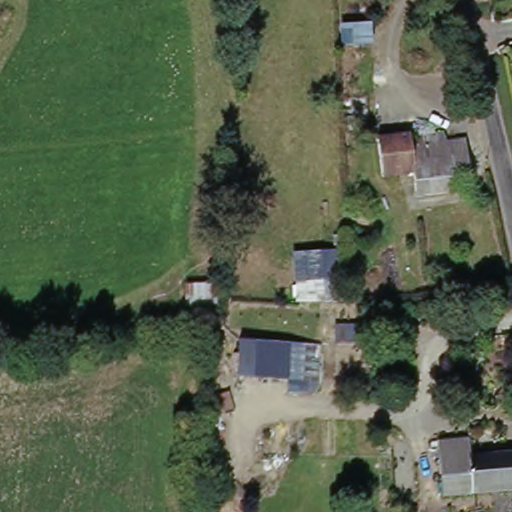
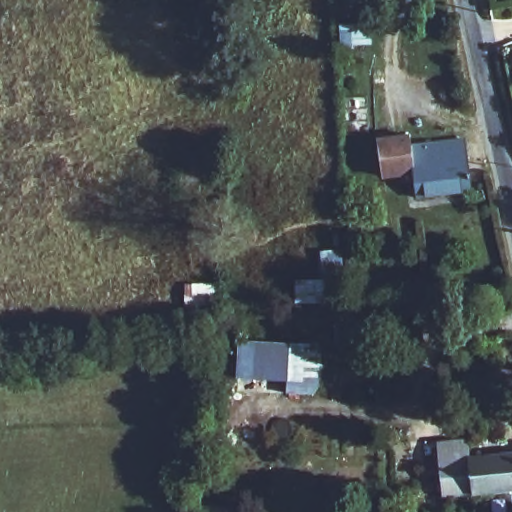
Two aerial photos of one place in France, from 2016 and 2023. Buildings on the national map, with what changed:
unchanged [(422,194),(419,169),(388,173),(383,137),(416,132),(417,144),(432,142),(432,135),(447,134),(447,140),(470,137),(478,186),(422,194)]
unchanged [(348,301),(294,304),(292,280),(317,277),(316,251),(346,253),(348,301)]
unchanged [(358,328),(358,344),(323,346),(323,330),(358,328)]
unchanged [(307,348),(315,348),(317,396),(313,397),(305,398),(283,398),(283,385),(278,386),(228,388),(226,351),(307,348)]
unchanged [(471,455),(512,452),(512,490),(442,495),(439,442),(469,441),(471,455)]

